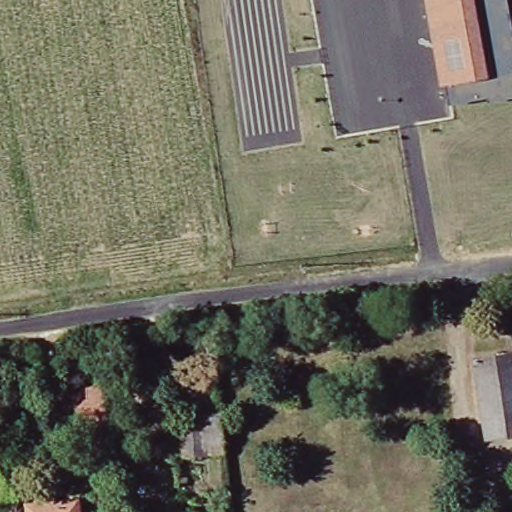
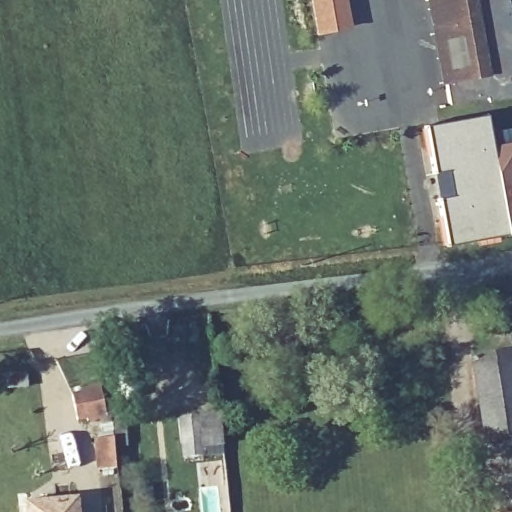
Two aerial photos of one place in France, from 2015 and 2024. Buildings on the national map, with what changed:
new [(351,28),(315,36),(309,0),(346,0),(351,28)]
unchanged [(512,18),(512,98),(487,102),(486,96),(450,103),(447,82),(473,77),(464,27),(438,31),(433,0),(509,0),(512,18)]
new [(446,250),(437,202),(432,177),(423,129),(485,117),(488,135),(512,130),(512,237),(446,250)]
unchanged [(471,356),(511,351),(512,355),(512,433),(481,437),(471,356)]
unchanged [(89,417),(88,412),(75,413),(75,411),(66,411),(63,387),(73,387),(72,385),(92,382),(96,409),(98,409),(99,417),(89,417)]
unchanged [(216,447),(195,450),(196,457),(176,458),(172,421),(213,417),(216,447)]
unchanged [(91,464),(88,435),(104,433),(107,462),(91,464)]
unchanged [(68,500),(70,512),(24,512),(23,505),(68,500)]
unchanged [(512,507),(512,512),(491,512),(490,510),(512,507)]

